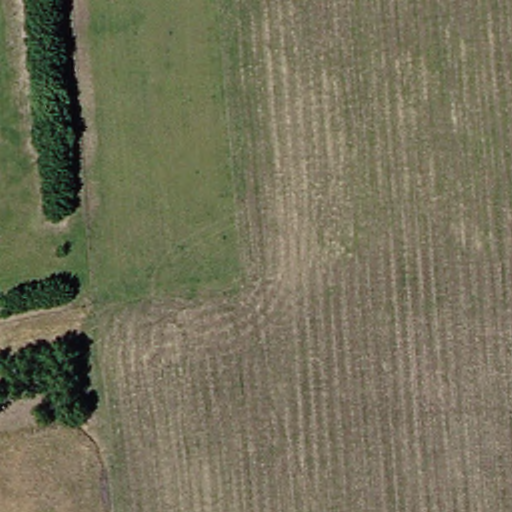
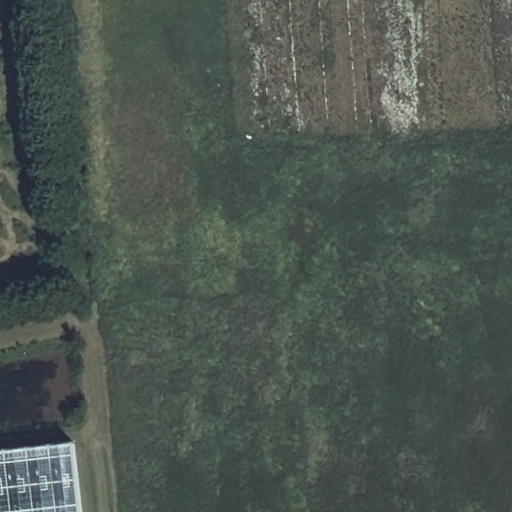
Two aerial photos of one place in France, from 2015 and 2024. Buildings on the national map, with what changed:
new [(81,512),(0,512),(0,448),(74,440),(81,512)]

